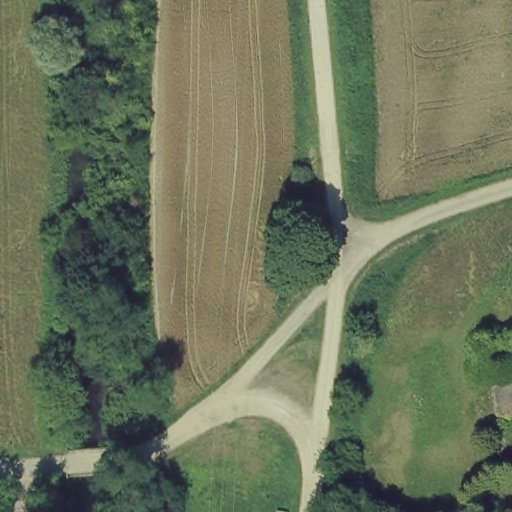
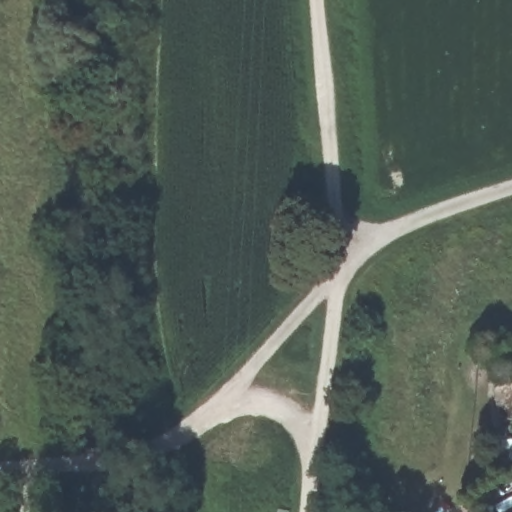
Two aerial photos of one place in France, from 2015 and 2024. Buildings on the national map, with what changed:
unchanged [(498,392),(512,385),(512,419),(500,415),(498,392)]

